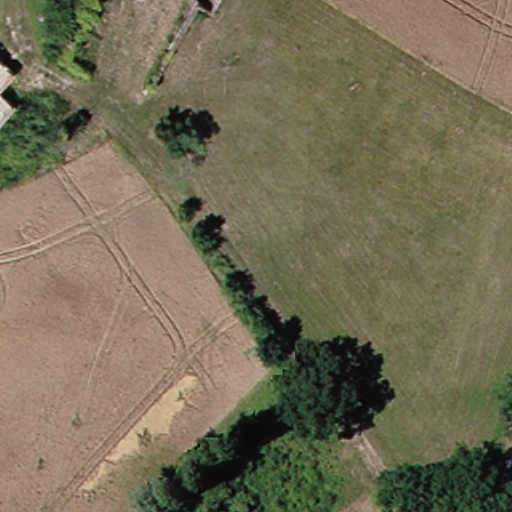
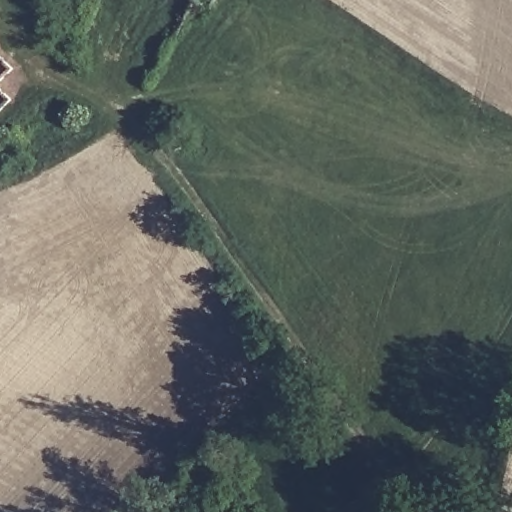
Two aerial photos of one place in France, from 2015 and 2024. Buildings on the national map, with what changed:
unchanged [(13,79),(0,92),(0,66),(13,79)]
unchanged [(12,110),(0,122),(0,98),(12,110)]

